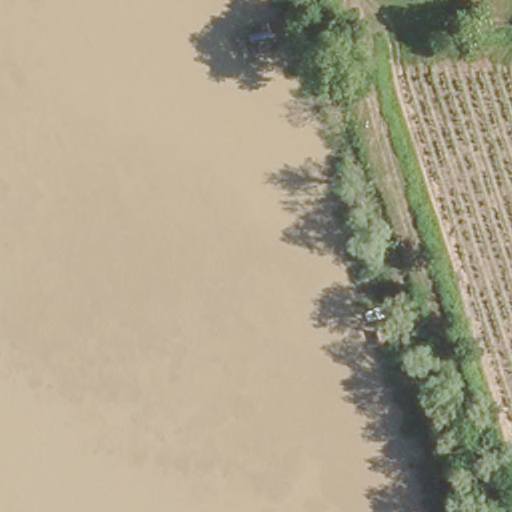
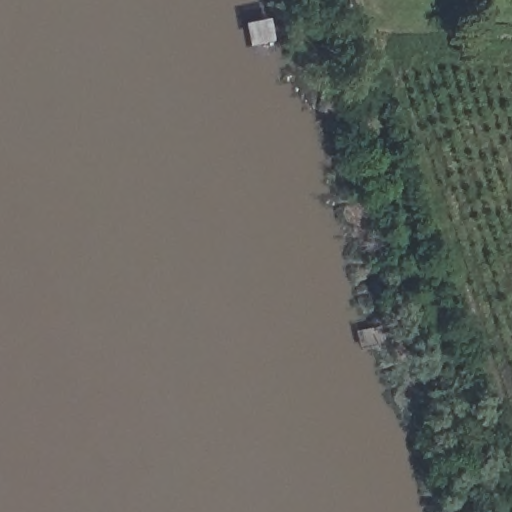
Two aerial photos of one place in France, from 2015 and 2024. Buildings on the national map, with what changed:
unchanged [(252,63),(239,27),(263,15),(277,52),(252,63)]

